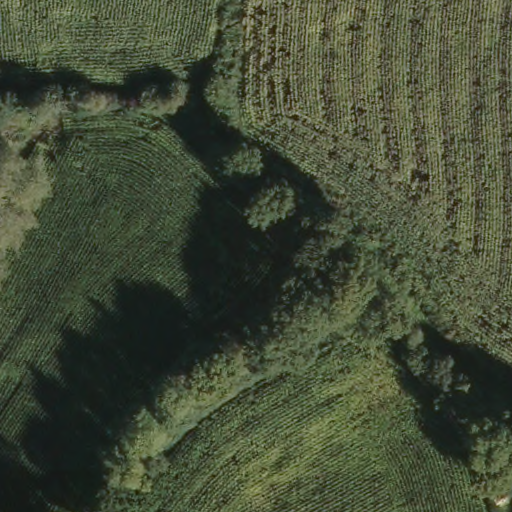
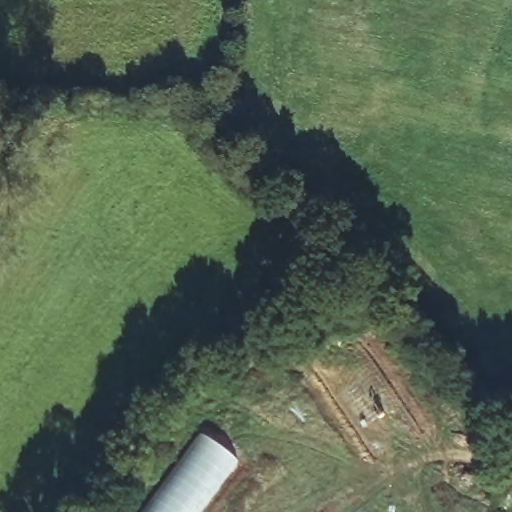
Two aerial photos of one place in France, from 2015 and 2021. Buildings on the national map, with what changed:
new [(202,432),(239,460),(199,512),(141,512),(202,432)]

